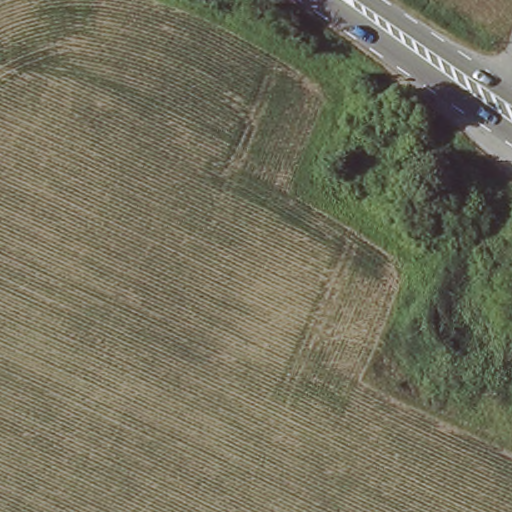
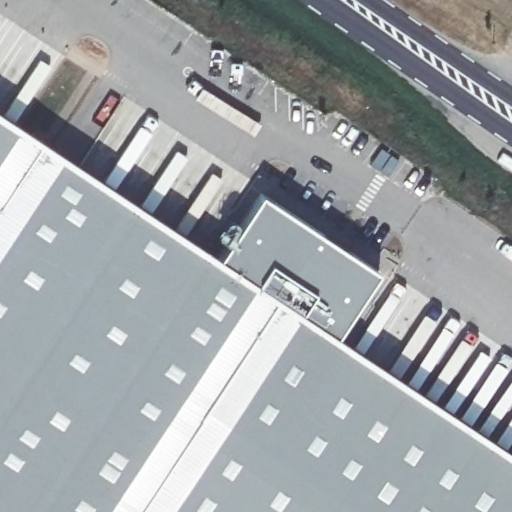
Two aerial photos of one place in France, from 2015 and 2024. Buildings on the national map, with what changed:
new [(218,261),(261,193),(379,272),(336,336),(512,453),(512,512),(0,512),(0,114),(218,261)]

